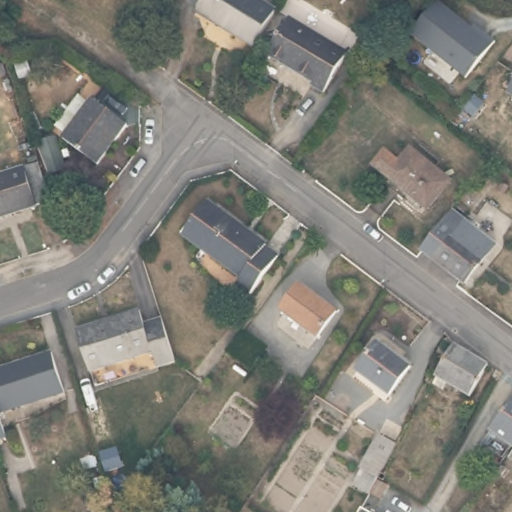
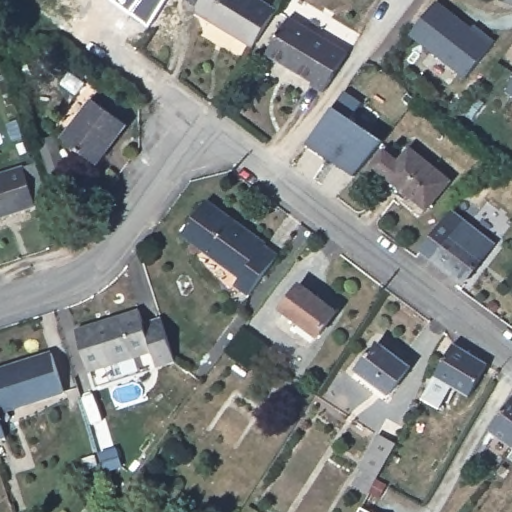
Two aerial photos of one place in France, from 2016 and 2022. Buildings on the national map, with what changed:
unchanged [(194,11),(196,7),(186,0),(255,0),(274,12),(250,49),(194,11)]
unchanged [(478,35),(481,32),(495,45),(463,82),(410,35),(439,1),(478,35)]
unchanged [(347,54),(322,92),(310,84),(310,81),(267,52),(291,16),(347,54)]
unchanged [(512,81),(512,90),(508,87),(512,81)]
new [(333,106),(346,91),(364,102),(351,118),(384,141),(355,176),(308,144),(333,106)]
unchanged [(64,141),(93,101),(128,127),(98,166),(64,141)]
unchanged [(399,166),(409,152),(450,183),(428,212),(373,172),(385,156),(399,166)]
unchanged [(28,168),(39,205),(29,209),(0,217),(0,176),(16,172),(28,168)]
unchanged [(265,242),(262,246),(278,257),(249,296),(234,284),(240,276),(180,232),(204,199),(265,242)]
unchanged [(467,288),(424,256),(432,247),(451,222),(465,205),(470,209),(466,214),(469,216),(464,222),(498,248),(467,288)]
unchanged [(335,312),(316,337),(280,310),(299,284),(335,312)]
unchanged [(154,370),(149,353),(88,372),(74,331),(138,312),(143,327),(159,321),(173,363),(154,370)]
unchanged [(227,351),(243,329),(256,339),(240,361),(227,351)]
unchanged [(408,367),(387,396),(355,372),(376,342),(408,367)]
unchanged [(434,377),(453,345),(488,365),(468,397),(434,377)]
unchanged [(0,369),(55,354),(66,393),(0,412),(0,369)]
unchanged [(489,433),(512,401),(512,449),(489,433)]
unchanged [(0,439),(0,414),(7,437),(0,439)]
unchanged [(349,485),(361,463),(360,462),(378,431),(395,442),(379,467),(385,472),(380,482),(373,478),(365,493),(349,485)]
unchanged [(511,454),(512,453),(512,464),(507,460),(511,454)]
unchanged [(505,472),(501,478),(496,475),(501,468),(505,472)]
unchanged [(373,512),(360,512),(363,507),(373,512)]

